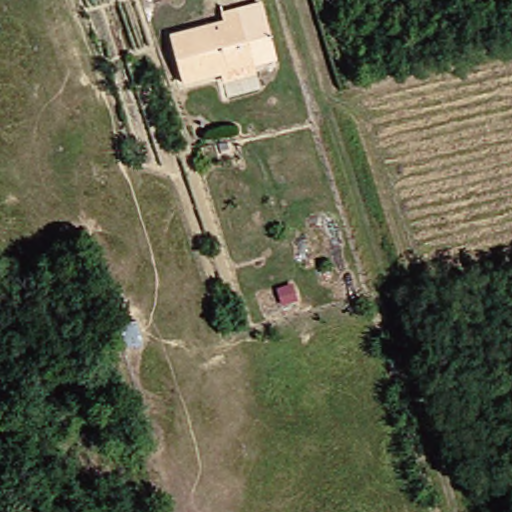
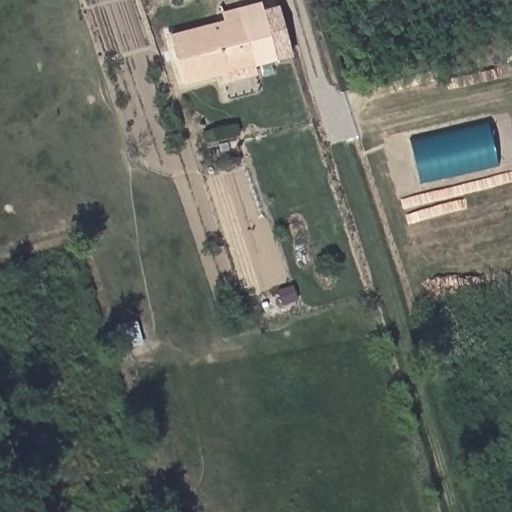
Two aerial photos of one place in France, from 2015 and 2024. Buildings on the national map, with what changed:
unchanged [(214,70),(178,79),(165,32),(201,24),(204,30),(219,26),(216,7),(239,0),(255,0),(269,53),(249,60),(251,71),(216,80),(214,70)]
new [(497,167),(419,185),(408,137),(486,119),(497,167)]

